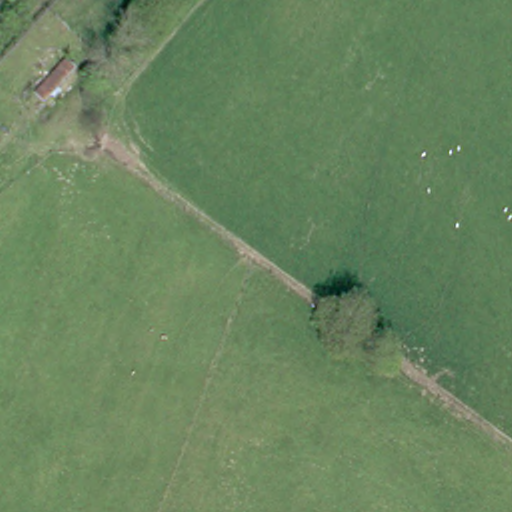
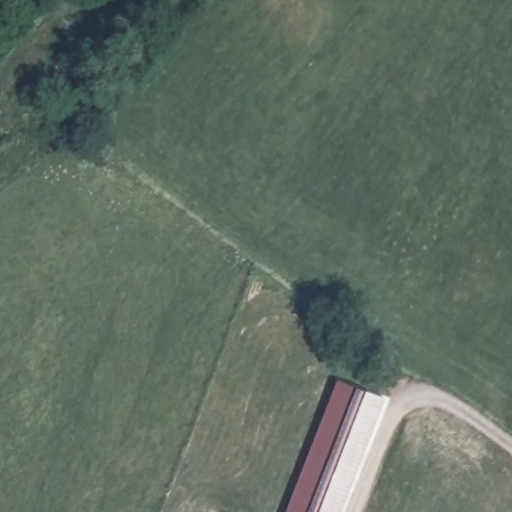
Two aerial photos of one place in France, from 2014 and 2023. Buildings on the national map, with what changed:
new [(341,512),(285,512),(337,379),(385,398),(341,512)]

